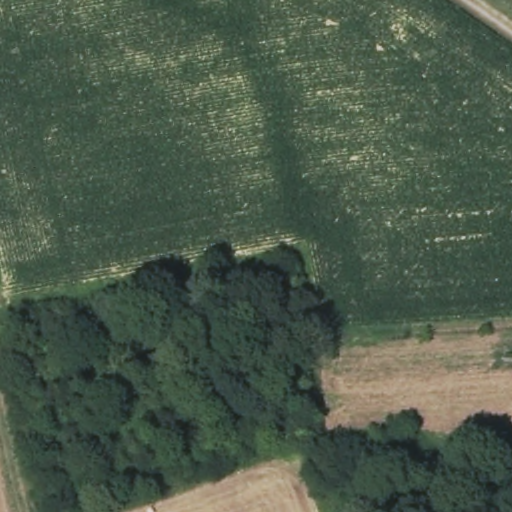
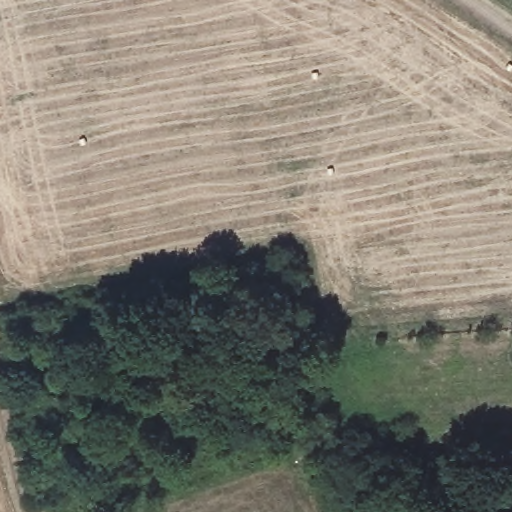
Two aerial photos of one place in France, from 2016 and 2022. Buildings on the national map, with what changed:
unchanged [(512,426),(512,459),(501,459),(497,428),(512,426)]

